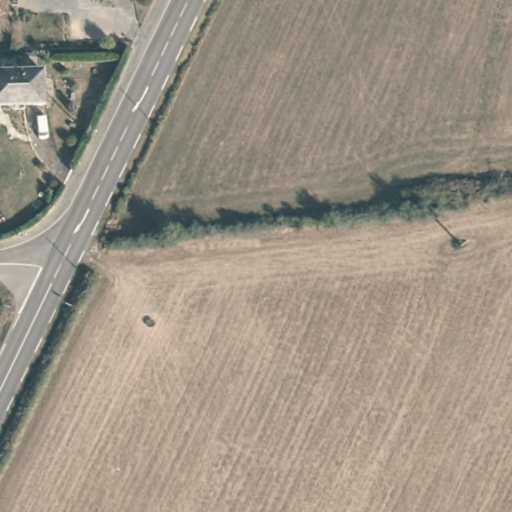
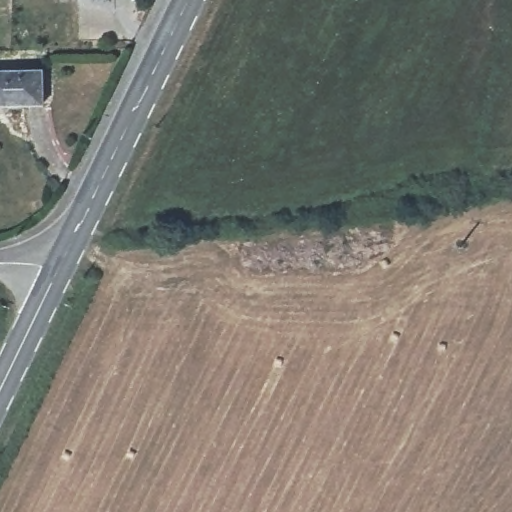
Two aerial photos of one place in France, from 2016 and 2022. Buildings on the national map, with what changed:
unchanged [(0,104),(0,69),(42,68),(44,103),(0,104)]

